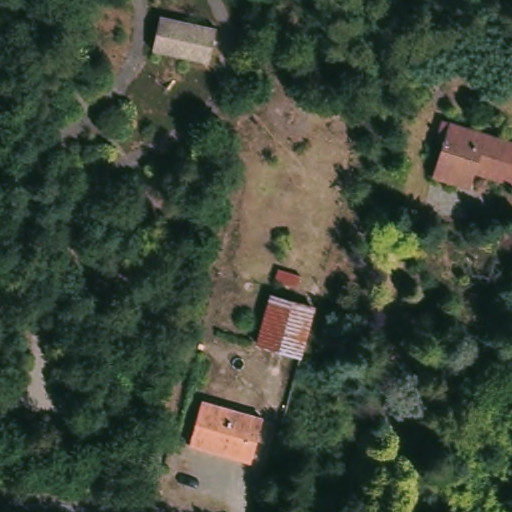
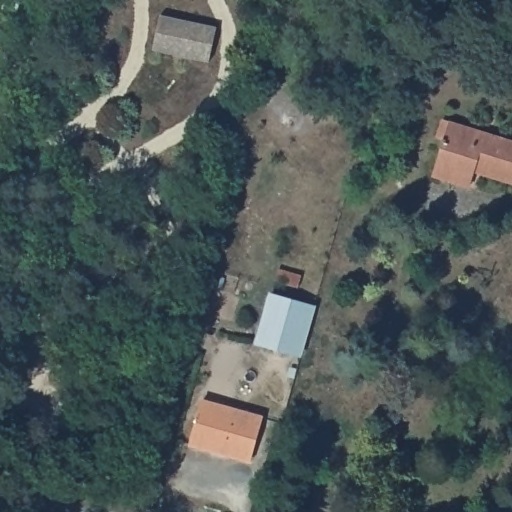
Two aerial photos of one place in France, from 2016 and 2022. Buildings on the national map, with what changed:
unchanged [(214,55),(212,61),(155,47),(157,41),(164,14),(220,28),(214,55)]
unchanged [(510,182),(470,170),(466,187),(431,176),(440,141),(434,139),(436,120),(512,145),(512,175),(510,182)]
unchanged [(310,308),(298,361),(248,347),(265,296),(310,308)]
unchanged [(250,460),(189,447),(199,404),(257,417),(250,460)]

